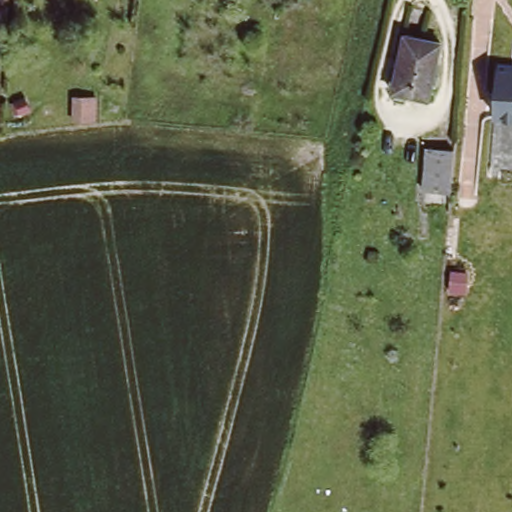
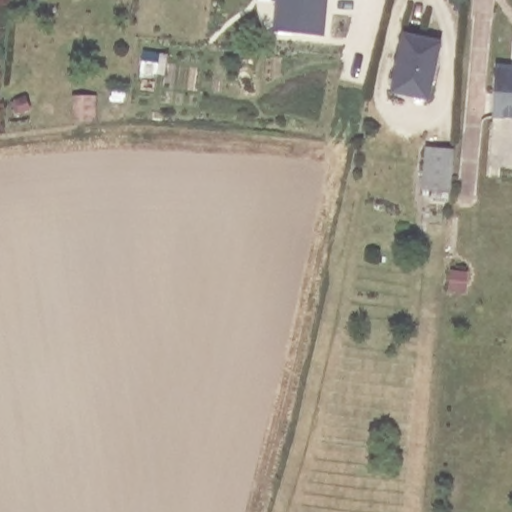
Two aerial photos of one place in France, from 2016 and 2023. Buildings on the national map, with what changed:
new [(276,0),(328,0),(326,37),(274,31),(276,0)]
unchanged [(431,97),(388,88),(402,27),(443,38),(431,97)]
unchanged [(496,112),(500,66),(512,67),(512,114),(496,112)]
unchanged [(91,95),(93,118),(73,120),(71,97),(91,95)]
unchanged [(452,189),(444,188),(421,185),(425,151),(414,148),(416,129),(435,131),(435,144),(454,145),(452,189)]

